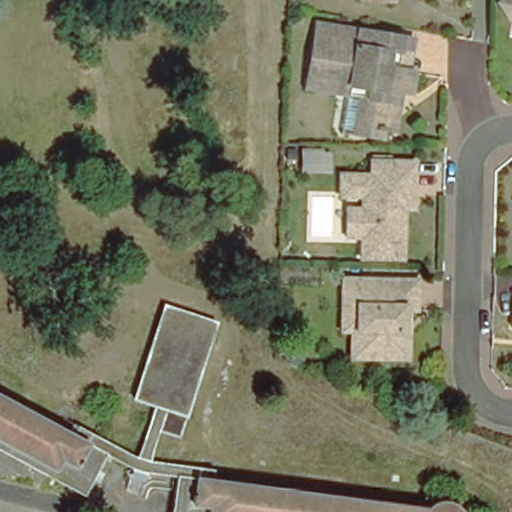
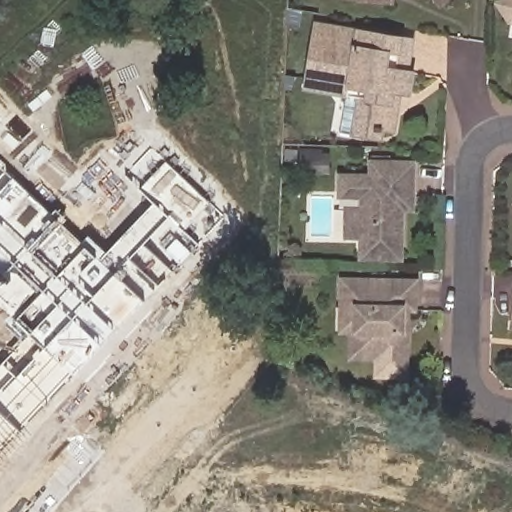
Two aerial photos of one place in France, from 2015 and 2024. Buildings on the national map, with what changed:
unchanged [(509,24),(491,0),(492,0),(512,0),(512,25),(509,24)]
unchanged [(348,115),(352,89),(345,88),(342,87),(321,84),(299,80),(301,69),(311,14),(332,18),(352,22),(406,32),(403,48),(401,63),(408,65),(404,86),(390,83),(387,93),(392,99),(388,122),(378,121),(377,128),(356,125),(356,127),(346,125),(348,115)]
new [(55,206),(69,218),(64,223),(82,241),(88,234),(107,251),(154,201),(121,171),(146,143),(208,200),(219,212),(195,240),(196,243),(172,270),(169,267),(152,289),(148,286),(139,296),(143,300),(74,374),(72,372),(0,449),(0,365),(24,340),(2,319),(9,313),(0,304),(0,164),(50,212),(55,206)]
unchanged [(402,205),(401,238),(360,236),(362,205),(341,204),(341,171),(372,171),(372,155),(416,157),(415,189),(415,205),(402,205)]
unchanged [(337,334),(338,308),(339,285),(339,279),(368,280),(415,282),(413,314),(407,313),(406,337),(405,362),(373,361),(347,361),(348,334),(337,334)]
demolished [(164,411),(147,461),(197,468),(196,476),(425,508),(426,507),(427,506),(428,506),(430,505),(431,505),(432,504),(433,504),(435,504),(435,503),(436,503),(437,503),(438,503),(440,503),(441,503),(442,503),(443,503),(444,503),(445,503),(446,503),(447,503),(449,504),(450,504),(452,505),(453,506),(455,506),(456,507),(457,508),(458,510),(460,511),(460,512),(171,512),(176,477),(138,471),(106,453),(82,493),(0,449),(0,395),(74,435),(78,427),(135,456),(152,407),(131,400),(165,304),(217,322),(185,417),(164,411)]
unchanged [(509,323),(512,307),(512,324),(509,323)]
unchanged [(304,353),(300,362),(280,355),(283,346),(304,353)]

